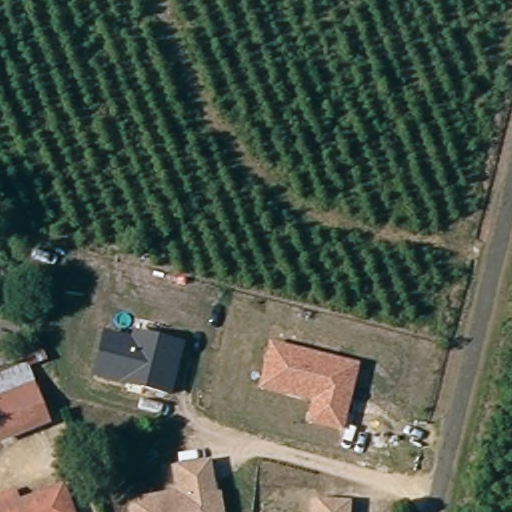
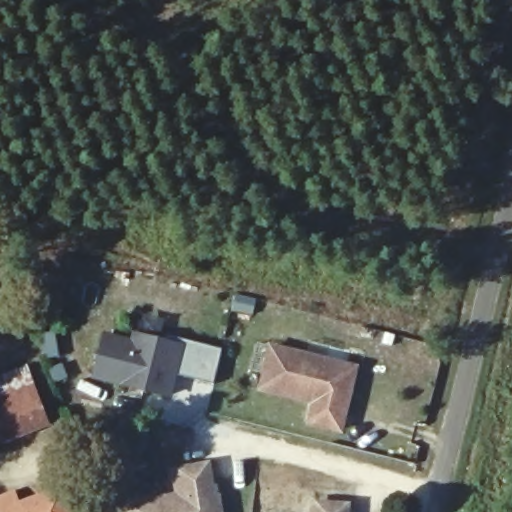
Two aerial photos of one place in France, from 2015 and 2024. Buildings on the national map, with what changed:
unchanged [(133,331),(186,344),(173,397),(94,378),(104,330),(131,338),(133,331)]
new [(178,338),(221,349),(213,384),(178,375),(186,344),(178,342),(178,338)]
unchanged [(258,390),(270,342),(360,365),(344,434),(307,424),(312,403),(258,390)]
unchanged [(42,415),(0,432),(0,391),(28,379),(42,415)]
unchanged [(231,512),(142,512),(140,500),(189,491),(184,466),(217,460),(223,492),(227,491),(231,512)]
unchanged [(69,512),(18,512),(61,495),(69,512)]
unchanged [(328,505),(328,496),(357,497),(356,512),(323,512),(323,505),(328,505)]
unchanged [(13,512),(0,512),(0,507),(10,504),(13,512)]

